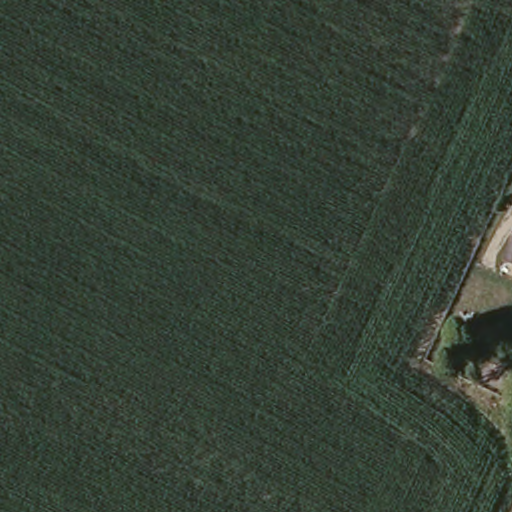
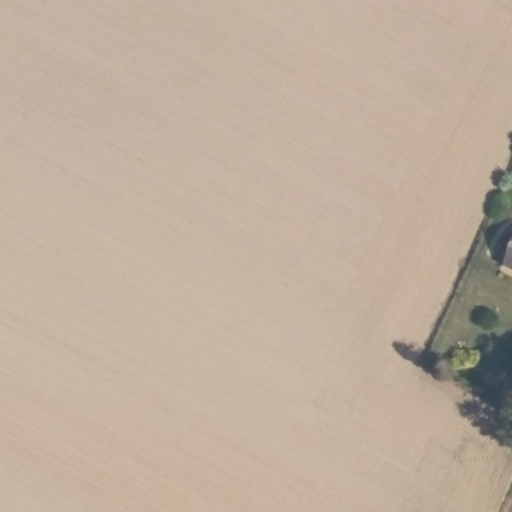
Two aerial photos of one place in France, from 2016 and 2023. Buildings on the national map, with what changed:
unchanged [(512,244),(512,268),(503,265),(512,244)]

